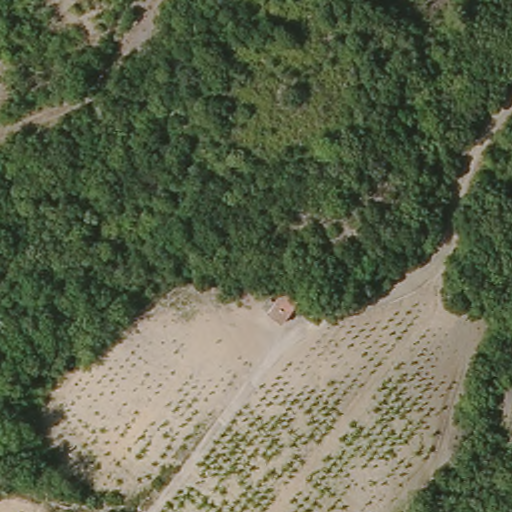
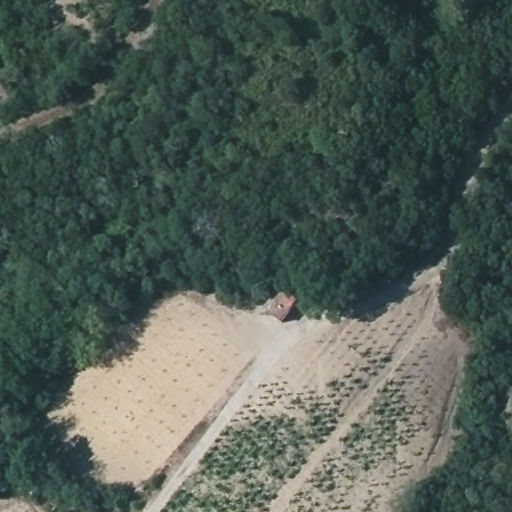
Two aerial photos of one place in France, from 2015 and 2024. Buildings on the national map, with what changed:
unchanged [(279,282),(300,303),(287,320),(267,307),(279,282)]

